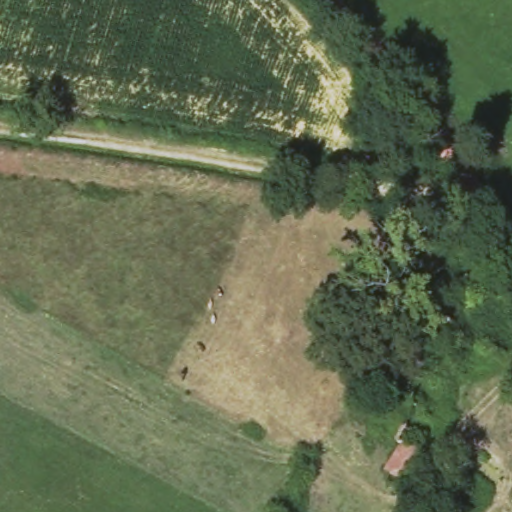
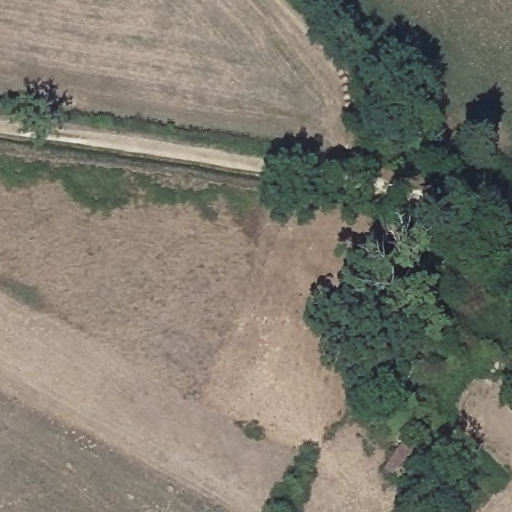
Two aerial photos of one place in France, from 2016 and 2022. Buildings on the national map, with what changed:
unchanged [(420,426),(408,442),(385,427),(408,392),(431,408),(420,426)]

